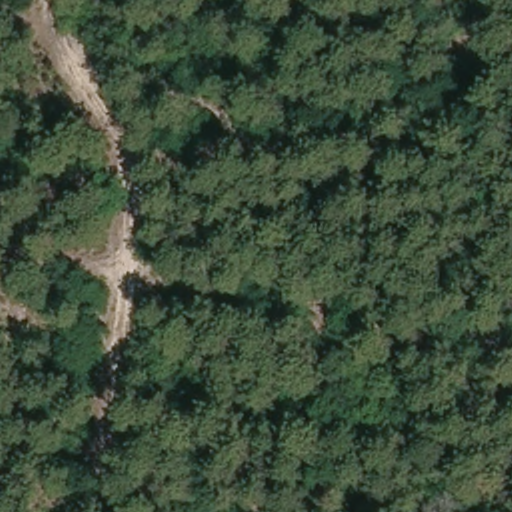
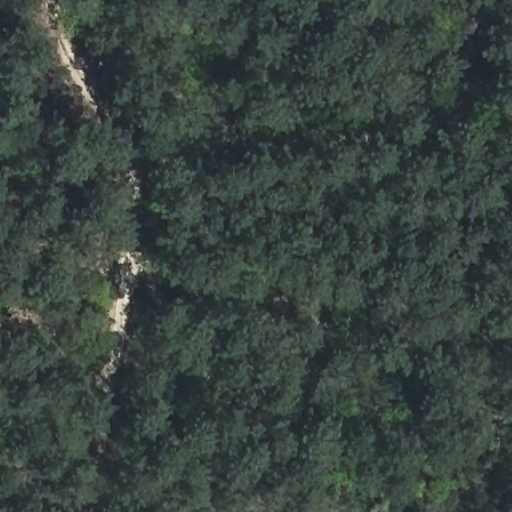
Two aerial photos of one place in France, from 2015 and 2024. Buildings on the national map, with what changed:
[]

